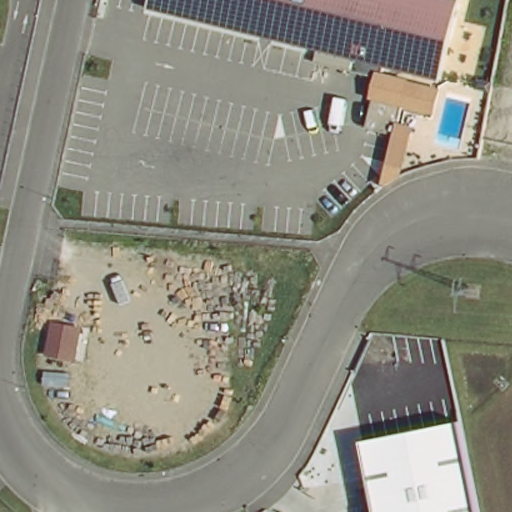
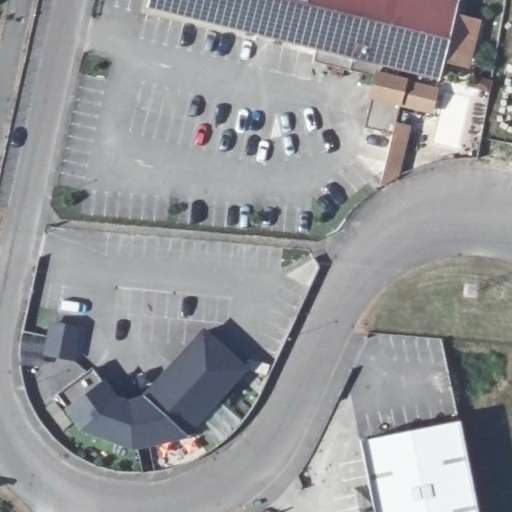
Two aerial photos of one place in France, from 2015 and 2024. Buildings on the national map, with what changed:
unchanged [(147,10),(150,0),(461,0),(442,83),(147,10)]
new [(394,129),(366,122),(374,88),(404,95),(398,118),(410,121),(405,144),(401,160),(387,157),(392,140),(394,129)]
unchanged [(52,316),(77,320),(72,349),(47,346),(52,316)]
new [(83,364),(105,396),(124,402),(124,398),(138,393),(200,326),(240,364),(178,431),(127,441),(76,423),(52,387),(83,364)]
unchanged [(360,442),(459,423),(477,512),(374,512),(360,442)]

